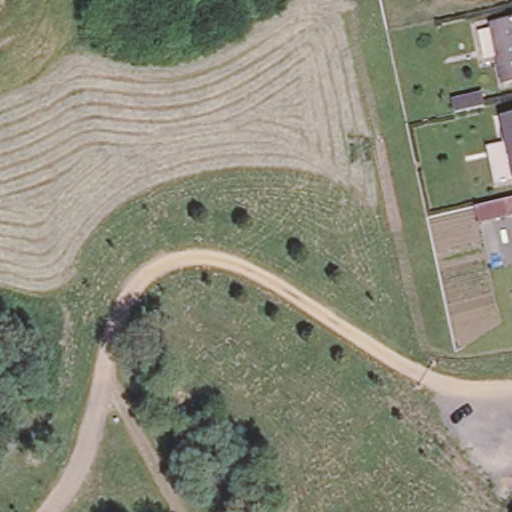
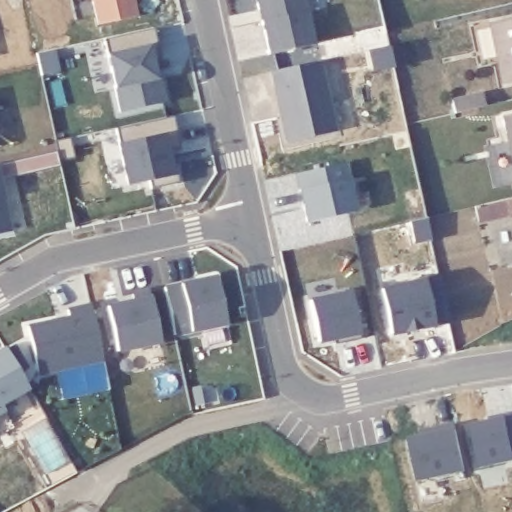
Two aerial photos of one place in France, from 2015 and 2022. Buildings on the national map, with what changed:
new [(139,15),(97,25),(91,0),(135,0),(139,15)]
new [(307,10),(314,45),(267,56),(260,21),(255,0),(305,0),(307,10)]
unchanged [(504,84),(491,27),(512,22),(512,82),(504,84)]
new [(161,58),(153,56),(157,77),(161,78),(165,101),(119,112),(114,89),(107,54),(105,38),(155,27),(161,58)]
new [(337,131),(286,144),(270,70),(320,57),(337,131)]
unchanged [(481,96),(484,109),(454,115),(451,102),(481,96)]
new [(181,148),(172,150),(178,181),(151,183),(127,187),(119,145),(115,125),(173,115),(181,148)]
unchanged [(511,116),(512,115),(512,123),(511,116)]
unchanged [(502,183),(495,145),(512,141),(512,181),(502,183)]
new [(349,176),(356,212),(305,224),(298,190),(295,172),(346,161),(349,176)]
new [(0,233),(0,187),(10,231),(0,233)]
unchanged [(507,218),(507,216),(477,224),(473,209),(505,203),(512,201),(512,216),(507,218)]
new [(434,324),(390,334),(380,289),(424,279),(434,324)]
new [(229,327),(177,338),(167,291),(184,287),(199,284),(218,280),(229,327)]
new [(359,335),(317,342),(309,301),(349,293),(359,335)]
new [(161,346),(116,355),(105,304),(151,294),(161,346)]
new [(103,359),(38,373),(27,326),(60,318),(61,324),(70,323),(67,308),(92,303),(103,359)]
new [(7,414),(0,417),(0,356),(8,352),(31,391),(3,407),(7,414)]
new [(480,466),(471,428),(489,424),(488,420),(512,415),(512,460),(480,466)]
new [(465,472),(417,482),(408,440),(422,439),(421,433),(454,426),(465,472)]

